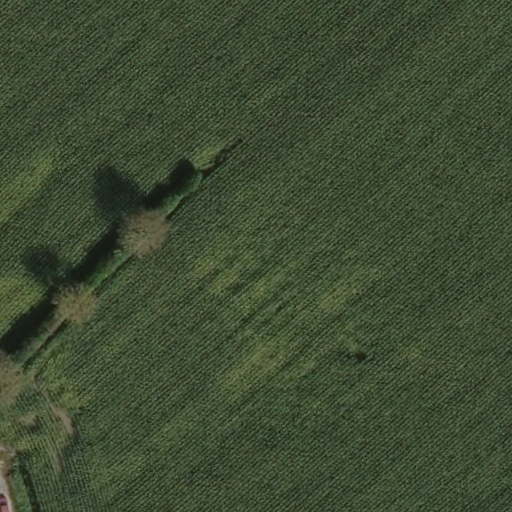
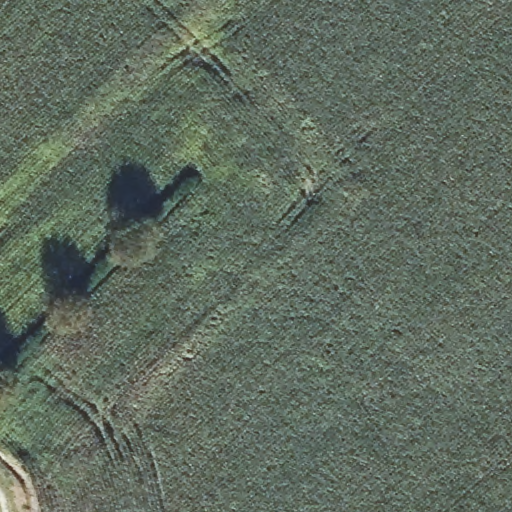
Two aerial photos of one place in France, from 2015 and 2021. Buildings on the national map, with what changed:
[]

